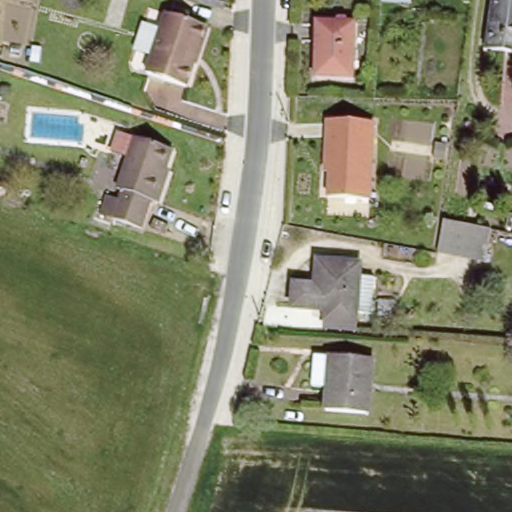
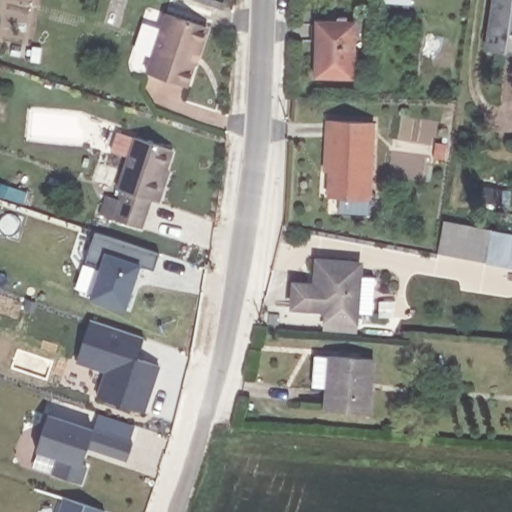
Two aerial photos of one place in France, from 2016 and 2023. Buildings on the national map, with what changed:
unchanged [(385,0),(414,0),(414,5),(385,2),(385,0)]
unchanged [(485,47),(494,0),(512,0),(512,52),(485,47)]
unchanged [(190,87),(151,74),(171,14),(210,28),(190,87)]
unchanged [(318,78),(319,22),(359,22),(357,79),(318,78)]
unchanged [(331,120),(376,122),(373,201),(332,199),(332,173),(329,173),(331,120)]
unchanged [(159,202),(155,201),(145,230),(116,220),(126,192),(121,190),(132,159),(115,153),(122,133),(176,151),(159,202)]
unchanged [(447,220),(496,229),(490,262),(442,254),(447,220)]
new [(100,266),(83,261),(95,232),(158,254),(153,270),(140,266),(125,312),(87,299),(100,266)]
unchanged [(331,318),(332,306),(297,303),(299,282),(319,284),(321,261),(367,263),(367,272),(382,273),(380,310),(362,309),(362,320),(361,329),(331,326),(331,318)]
new [(145,337),(137,358),(160,367),(144,413),(95,396),(104,372),(75,362),(90,319),(145,337)]
unchanged [(376,411),(331,408),(332,393),(318,392),(321,359),(380,363),(376,411)]
new [(47,415),(92,431),(131,442),(126,461),(87,450),(81,467),(86,469),(81,485),(48,473),(52,458),(34,452),(47,415)]
new [(105,511),(105,512),(57,512),(62,496),(105,511)]

